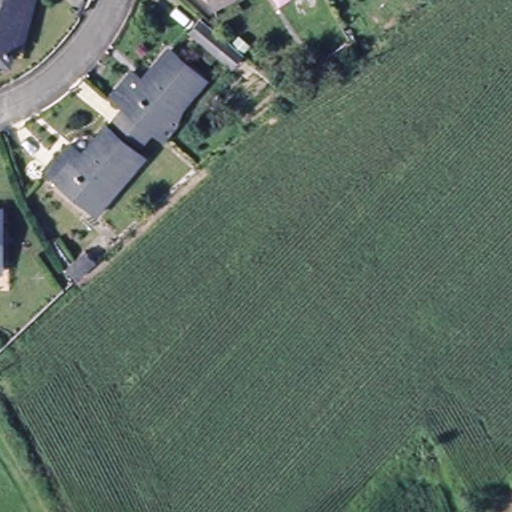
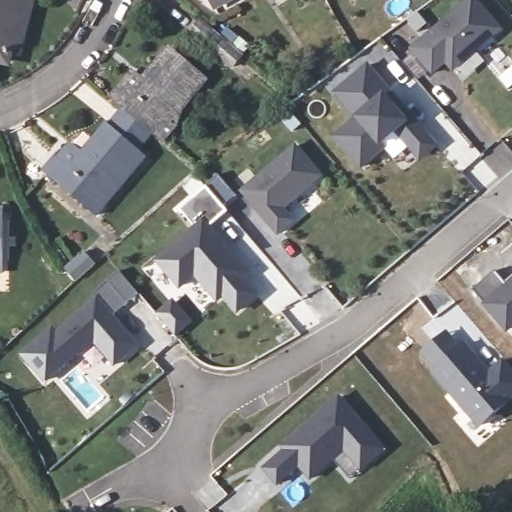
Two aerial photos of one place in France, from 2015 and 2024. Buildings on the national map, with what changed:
unchanged [(29,50),(21,48),(18,63),(0,59),(0,0),(42,0),(29,50)]
unchanged [(241,2),(221,13),(213,0),(239,0),(241,2)]
new [(468,0),(478,0),(502,27),(459,65),(452,64),(448,60),(435,71),(414,48),(468,0)]
unchanged [(234,66),(219,54),(191,31),(202,18),(230,41),(245,53),(234,66)]
unchanged [(165,141),(155,132),(153,130),(125,106),(113,95),(133,71),(144,81),(170,48),(203,74),(209,80),(185,108),(178,125),(165,141)]
new [(421,157),(411,146),(397,130),(382,143),(385,147),(363,166),(336,136),(358,117),(336,92),(368,64),(391,90),(400,101),(427,132),(437,143),(421,157)]
unchanged [(46,170),(66,147),(70,142),(84,153),(125,106),(153,130),(138,148),(146,156),(123,184),(100,213),(90,205),(46,170)]
new [(295,219),(278,235),(239,192),(295,142),(323,176),(286,208),(295,219)]
new [(248,271),(242,276),(256,292),(237,308),(223,291),(217,297),(195,271),(180,284),(158,258),(196,226),(180,207),(206,184),(228,209),(209,225),(224,243),(230,250),(248,271)]
unchanged [(5,218),(5,257),(0,257),(0,218),(5,218)]
unchanged [(98,264),(80,280),(69,268),(87,252),(98,264)]
new [(476,288),(499,268),(510,280),(512,278),(512,327),(511,327),(476,288)]
new [(113,314),(140,344),(114,365),(94,344),(45,382),(20,353),(51,326),(55,331),(97,296),(93,292),(119,271),(137,293),(113,314)]
new [(175,332),(166,323),(158,313),(174,300),(182,310),(190,319),(175,332)]
new [(461,325),(472,339),(467,343),(489,368),(504,356),(512,367),(512,400),(478,428),(445,386),(421,352),(449,329),(461,325)]
new [(340,394),(386,449),(362,470),(343,450),(311,480),(299,466),(276,485),(262,468),(284,451),(280,446),(340,394)]

